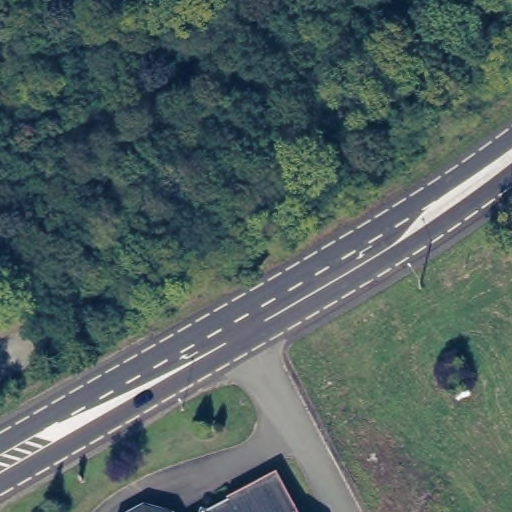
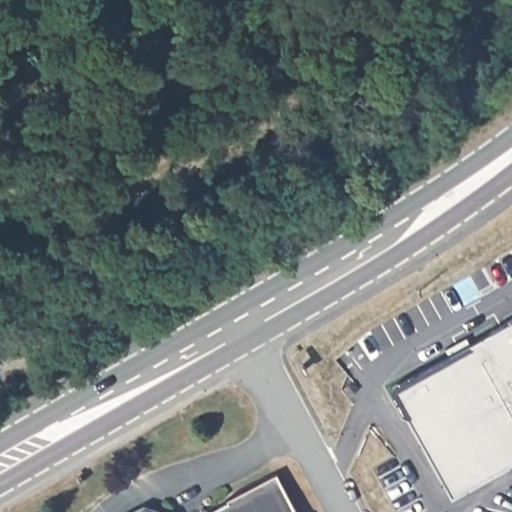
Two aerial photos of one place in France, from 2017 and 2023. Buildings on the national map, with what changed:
new [(512,321),(512,463),(452,496),(392,389),(512,321)]
unchanged [(210,509),(228,501),(227,499),(277,472),(298,512),(202,512),(205,507),(210,509)]
unchanged [(170,512),(130,512),(145,505),(170,512)]

